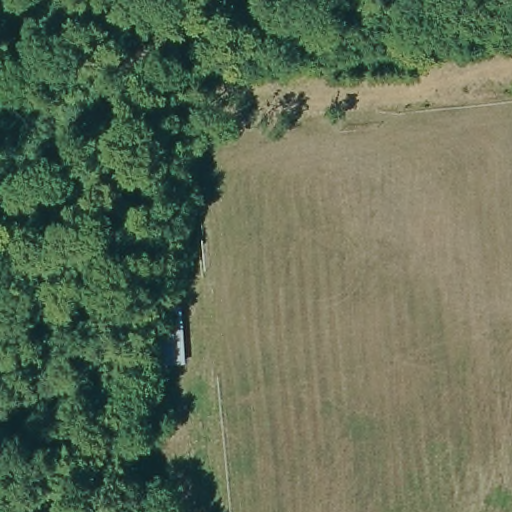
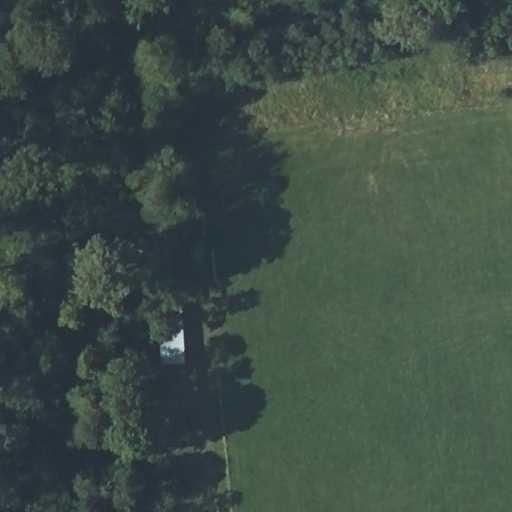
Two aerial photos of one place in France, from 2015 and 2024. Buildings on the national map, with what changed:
unchanged [(186,363),(163,365),(159,303),(183,301),(186,363)]

